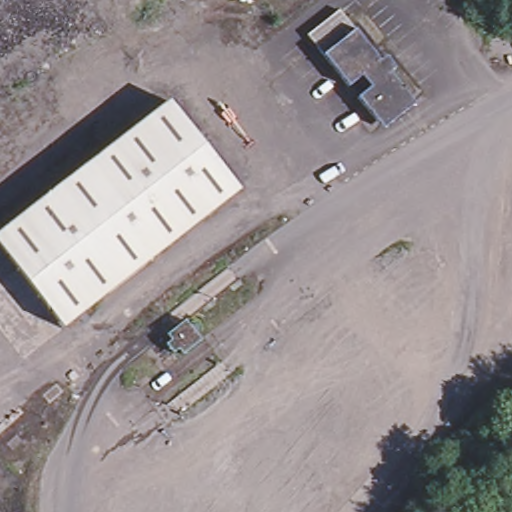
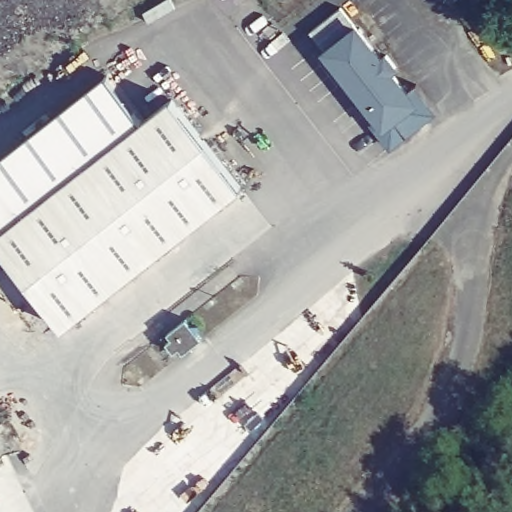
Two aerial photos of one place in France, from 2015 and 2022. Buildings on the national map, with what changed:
unchanged [(387,71),(391,67),(401,79),(396,83),(421,113),(390,139),(363,107),(376,96),(369,87),(356,97),(331,66),(331,65),(317,47),(347,22),(361,41),(362,40),(387,71)]
new [(145,127),(0,243),(0,157),(105,76),(145,127)]
unchanged [(237,192),(67,328),(0,244),(0,243),(170,107),(237,192)]
unchanged [(160,342),(177,327),(195,348),(177,363),(171,356),(165,361),(160,354),(165,349),(160,342)]

